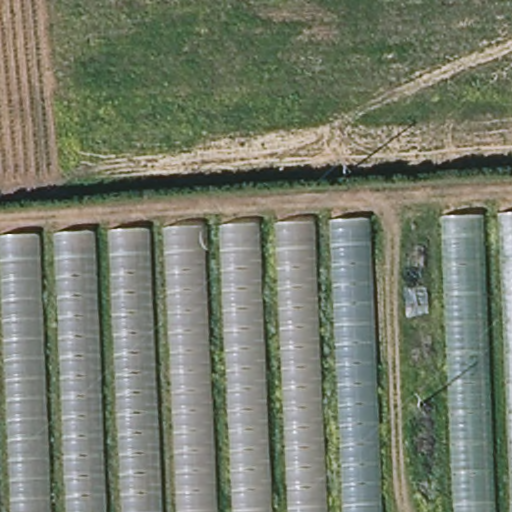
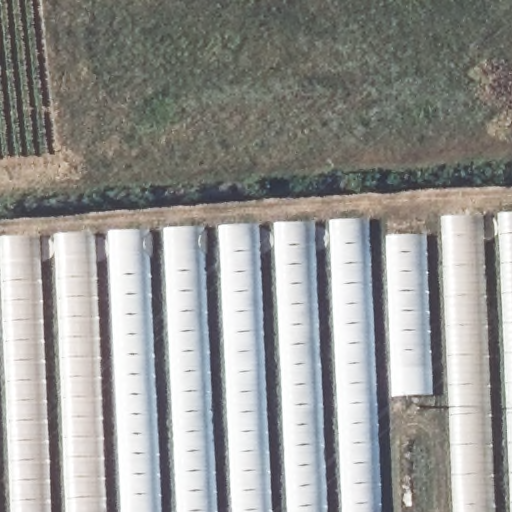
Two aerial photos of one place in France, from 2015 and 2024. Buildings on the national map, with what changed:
unchanged [(512,512),(456,512),(443,215),(512,211),(512,512)]
unchanged [(389,512),(0,512),(0,240),(371,217),(389,512)]
new [(385,237),(427,235),(435,396),(392,397),(385,237)]

